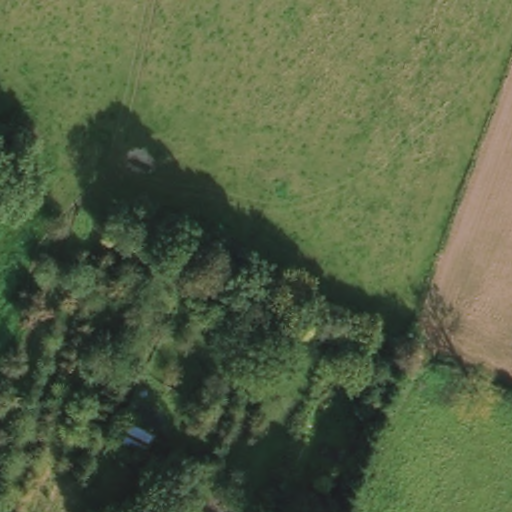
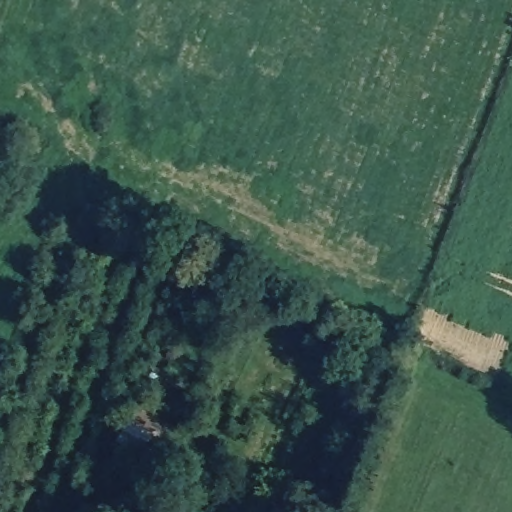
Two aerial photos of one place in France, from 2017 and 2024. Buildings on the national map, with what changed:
unchanged [(132,422),(155,435),(147,458),(122,444),(132,422)]

